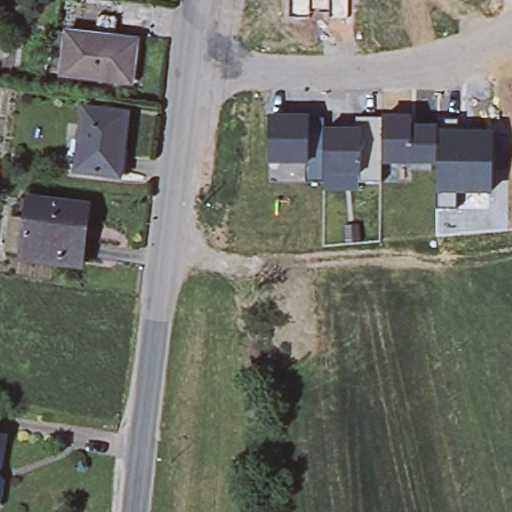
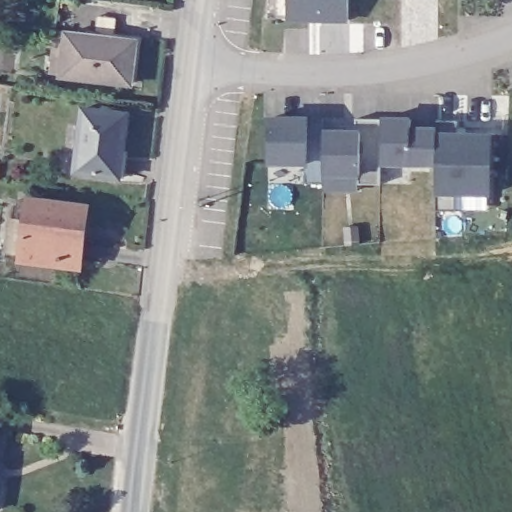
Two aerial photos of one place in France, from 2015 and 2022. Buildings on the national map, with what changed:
new [(351,0),(351,23),(287,22),(288,0),(351,0)]
unchanged [(66,34),(134,42),(129,83),(61,75),(66,34)]
unchanged [(87,109),(131,115),(123,178),(79,173),(87,109)]
unchanged [(269,114),(310,115),(324,115),(325,129),(356,129),(356,118),(382,118),(383,114),(414,115),(414,125),(439,126),(438,130),(493,131),(491,194),(457,193),(456,209),(439,209),(440,193),(440,164),(381,163),(381,182),(360,182),(359,192),(325,192),(324,183),(306,183),(306,164),(269,164),(269,114)]
unchanged [(87,265),(32,259),(14,257),(18,224),(25,224),(27,203),(39,204),(94,211),(87,265)]
unchanged [(343,225),(360,224),(361,243),(345,244),(343,225)]
unchanged [(3,448),(0,468),(0,437),(5,438),(3,448)]
unchanged [(0,505),(0,480),(3,484),(0,505)]

